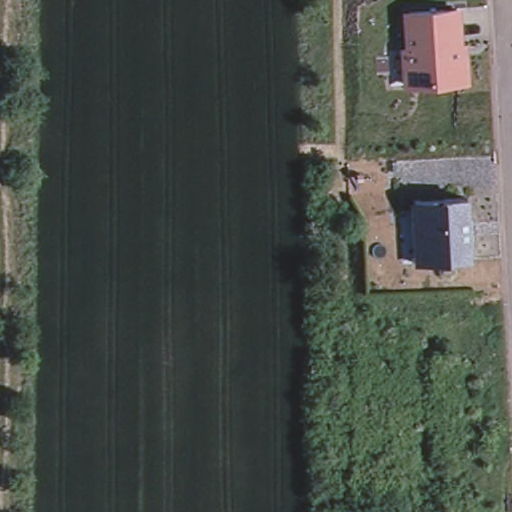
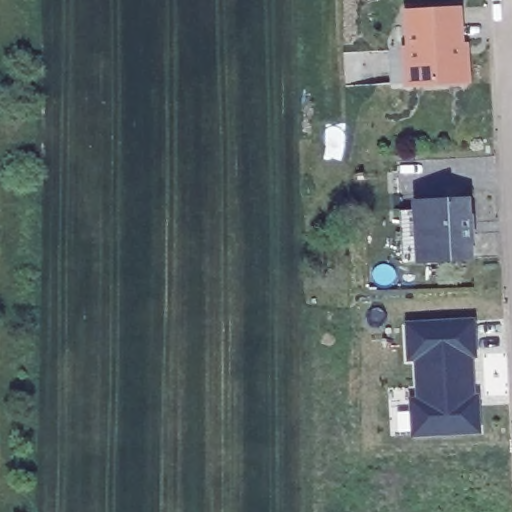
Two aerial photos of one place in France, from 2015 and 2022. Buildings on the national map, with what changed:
unchanged [(461,80),(417,82),(409,82),(407,47),(412,47),(410,11),(416,11),(458,8),(460,37),(460,46),(459,47),(460,54),(465,54),(467,80),(461,80)]
unchanged [(408,262),(405,209),(420,208),(420,200),(424,199),(468,197),(473,197),(473,201),(475,258),(469,258),(431,261),(426,261),(408,262)]
new [(483,362),(477,363),(478,371),(486,370),(488,391),(484,392),(487,437),(410,440),(407,392),(413,391),(411,363),(403,363),(400,321),(402,321),(402,317),(479,313),(483,362)]

